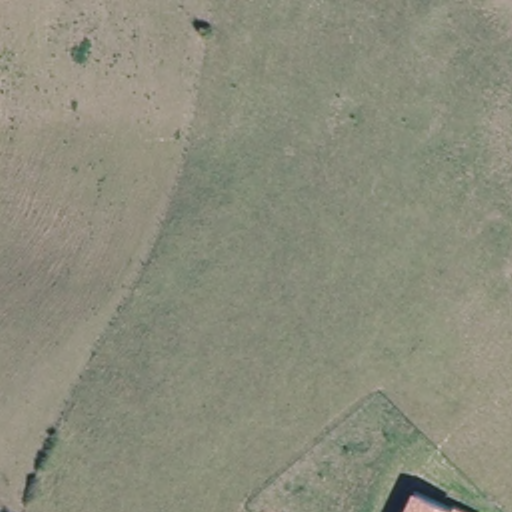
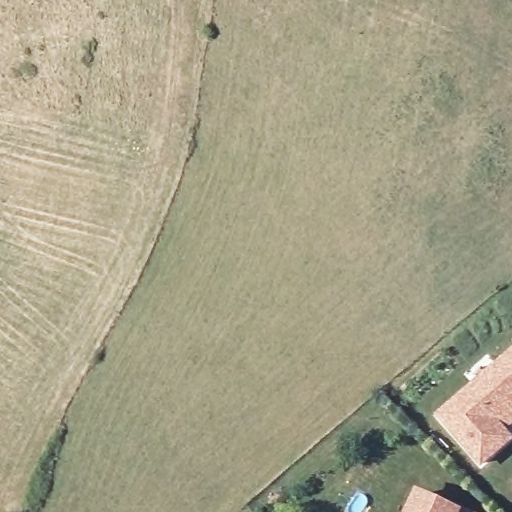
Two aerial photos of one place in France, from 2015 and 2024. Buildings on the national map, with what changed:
new [(512,348),(512,425),(506,430),(512,437),(512,442),(482,469),(435,416),(512,348)]
unchanged [(460,509),(466,512),(404,512),(414,488),(460,509)]

